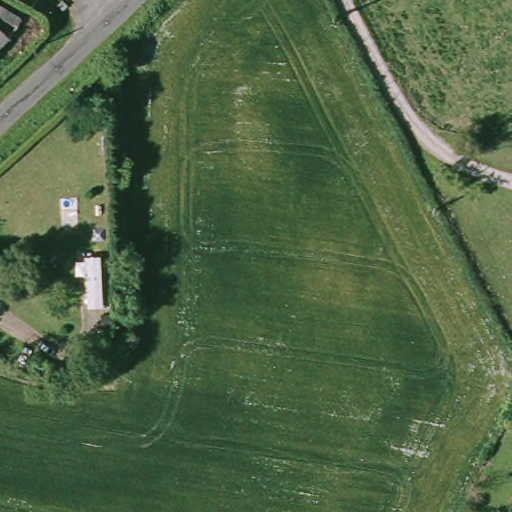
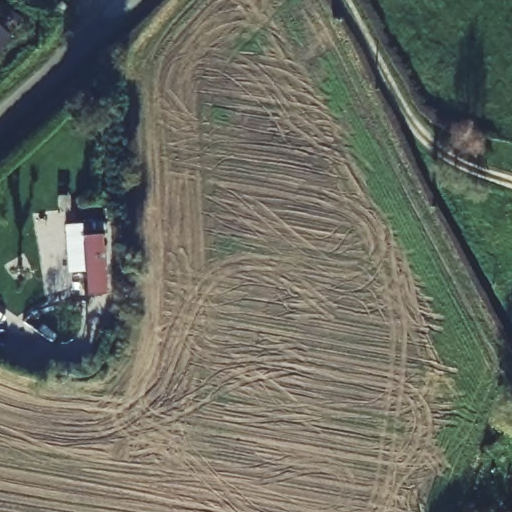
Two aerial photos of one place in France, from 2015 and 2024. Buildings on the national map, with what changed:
unchanged [(4,36),(0,40),(0,31),(4,36)]
unchanged [(83,241),(98,237),(101,273),(85,275),(83,241)]
unchanged [(99,281),(99,310),(86,310),(85,282),(99,281)]

